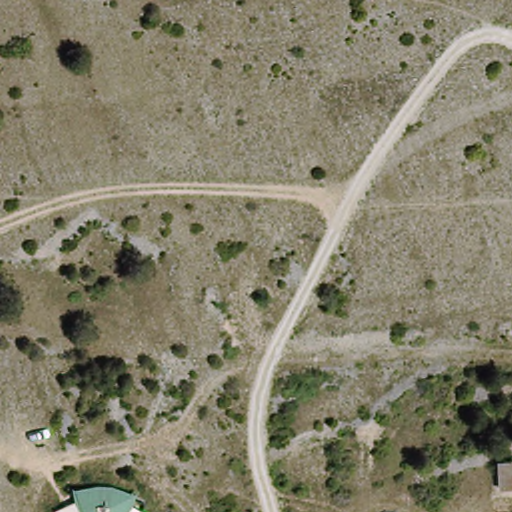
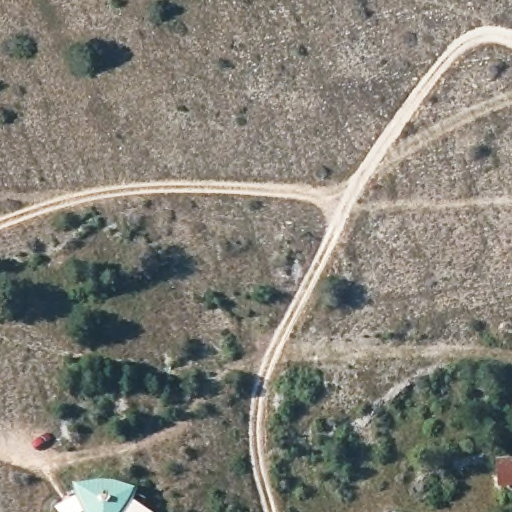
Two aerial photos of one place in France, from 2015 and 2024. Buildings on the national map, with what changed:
unchanged [(512,458),(512,485),(500,486),(499,460),(512,458)]
unchanged [(100,482),(112,482),(139,492),(136,502),(148,512),(56,512),(55,511),(77,502),(74,489),(100,482)]

